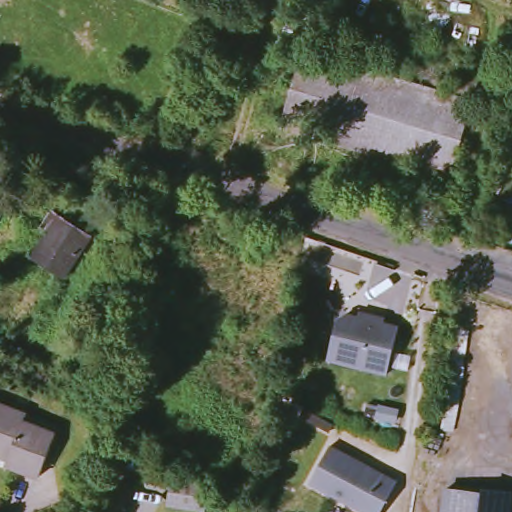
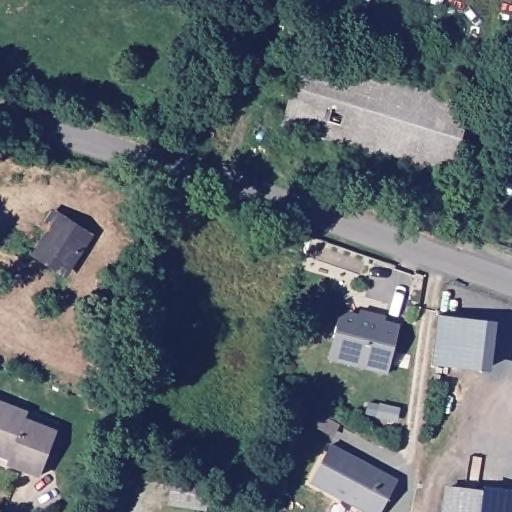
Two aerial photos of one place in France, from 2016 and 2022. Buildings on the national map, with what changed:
unchanged [(476,102),(453,179),(282,127),(305,50),(476,102)]
unchanged [(40,266),(42,257),(48,235),(41,233),(46,216),(54,218),(88,229),(77,268),(74,276),(40,266)]
unchanged [(343,319),(353,313),(363,316),(365,311),(385,317),(383,322),(403,327),(390,374),(332,358),(343,319)]
new [(437,316),(496,324),(490,374),(431,366),(437,316)]
unchanged [(25,419),(22,425),(53,439),(35,481),(0,465),(0,464),(1,461),(0,460),(0,408),(25,419)]
unchanged [(365,464),(370,463),(400,480),(382,512),(372,512),(314,481),(335,444),(358,457),(360,461),(365,464)]
unchanged [(450,480),(505,487),(501,512),(447,512),(447,509),(450,480)]
unchanged [(175,496),(175,486),(200,488),(198,498),(180,497),(175,496)]

